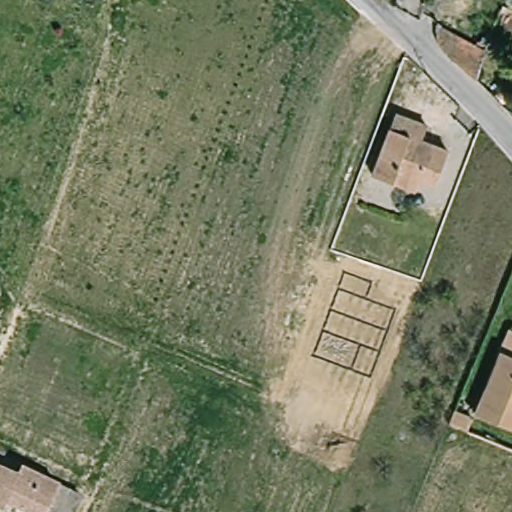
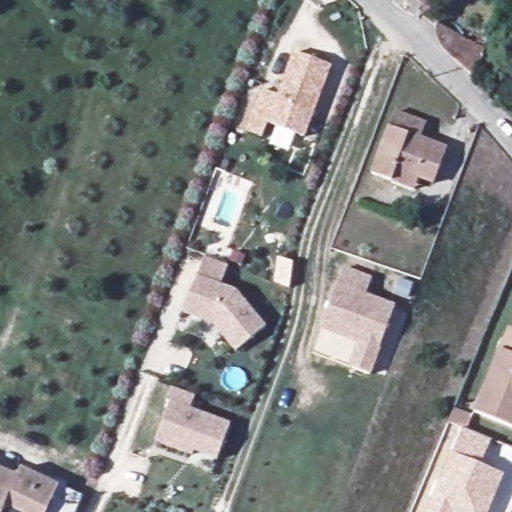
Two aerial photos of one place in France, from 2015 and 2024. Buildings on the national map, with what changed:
unchanged [(449,51),(443,45),(442,34),(439,26),(439,19),(464,35),(487,54),(480,79),(449,51)]
new [(261,90),(278,96),(294,53),(330,66),(303,138),(267,124),(262,138),(246,132),(261,90)]
unchanged [(397,183),(382,177),(377,175),(400,112),(403,114),(432,124),(427,138),(434,141),(453,148),(439,184),(426,179),(421,192),(417,190),(397,183)]
new [(205,255),(228,264),(221,285),(237,290),(266,326),(237,350),(214,323),(184,312),(205,255)]
unchanged [(395,308),(372,377),(314,355),(345,273),(371,282),(366,298),(395,308)]
unchanged [(476,410),(502,348),(512,353),(512,426),(476,410)]
new [(170,401),(166,399),(171,386),(195,394),(190,408),(230,423),(217,458),(194,449),(192,454),(191,453),(155,440),(170,401)]
new [(489,512),(427,512),(452,452),(463,430),(449,424),(455,409),(474,416),(467,430),(492,441),(481,465),(504,475),(489,512)]
unchanged [(0,471),(18,479),(20,474),(84,500),(78,512),(0,512),(0,471)]

